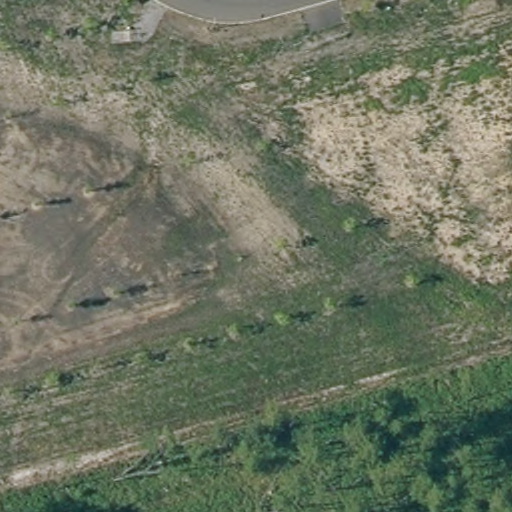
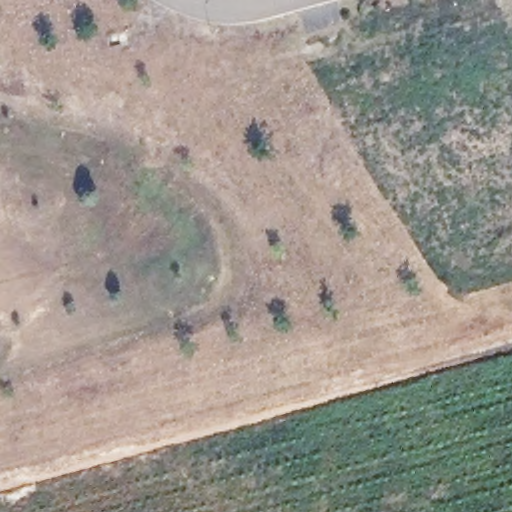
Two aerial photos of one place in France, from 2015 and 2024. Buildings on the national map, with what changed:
[]

